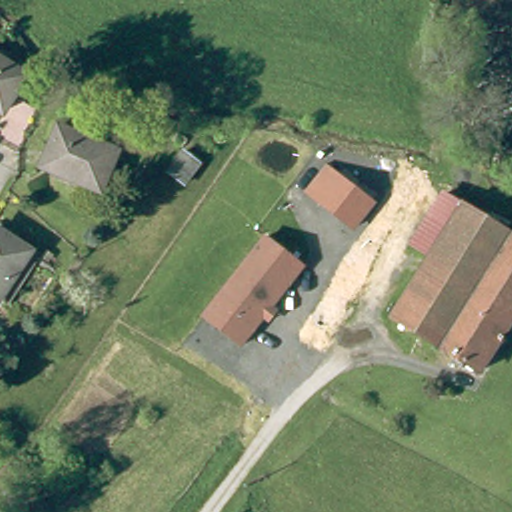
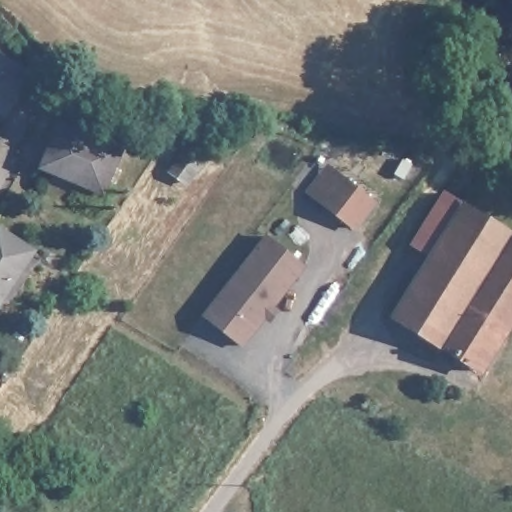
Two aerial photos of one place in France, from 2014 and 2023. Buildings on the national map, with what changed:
unchanged [(10,114),(0,109),(0,67),(26,80),(10,114)]
unchanged [(108,198),(49,177),(63,139),(120,160),(108,198)]
unchanged [(376,204),(358,232),(304,192),(326,165),(376,204)]
unchanged [(469,210),(512,237),(512,331),(483,376),(399,320),(469,210)]
unchanged [(0,307),(0,237),(33,257),(0,307)]
unchanged [(304,266),(245,346),(206,318),(266,240),(304,266)]

